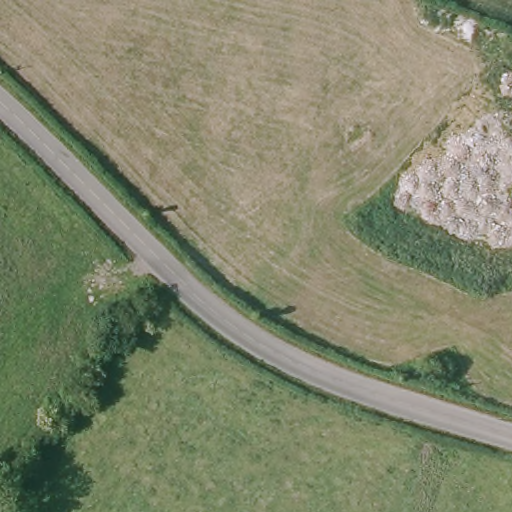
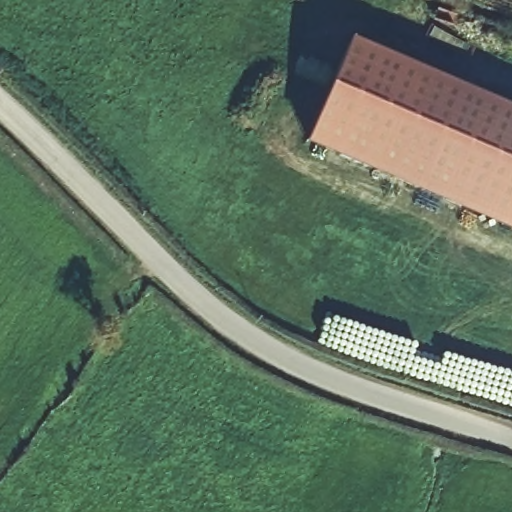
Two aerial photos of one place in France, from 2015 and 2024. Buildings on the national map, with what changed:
new [(303,145),(350,38),(512,108),(512,233),(303,145)]

